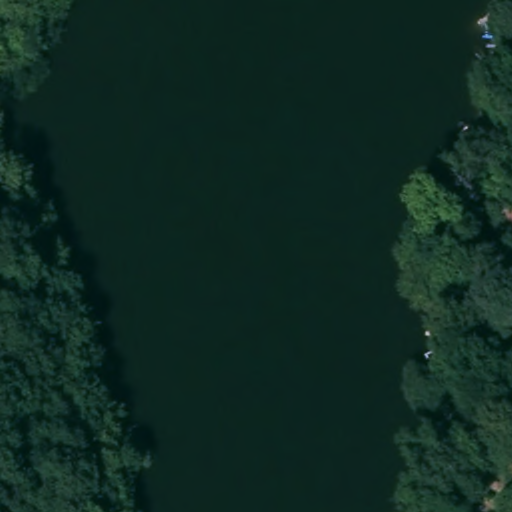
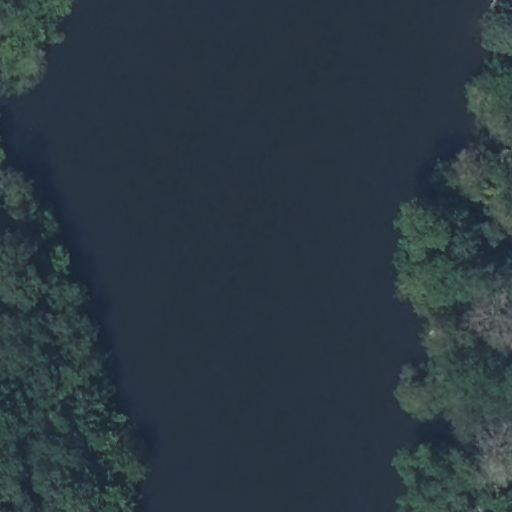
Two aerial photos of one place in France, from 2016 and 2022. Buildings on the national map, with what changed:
unchanged [(512,290),(512,309),(504,309),(502,290),(512,290)]

